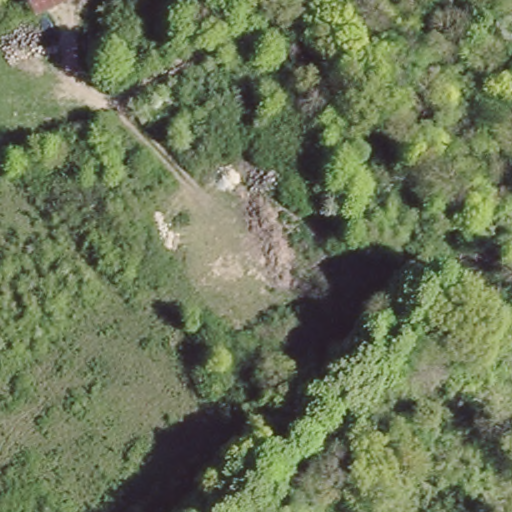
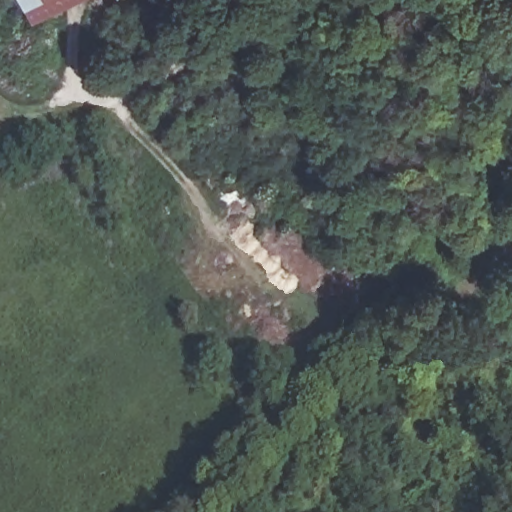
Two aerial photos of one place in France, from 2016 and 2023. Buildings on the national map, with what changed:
unchanged [(27,0),(72,0),(35,17),(27,0)]

